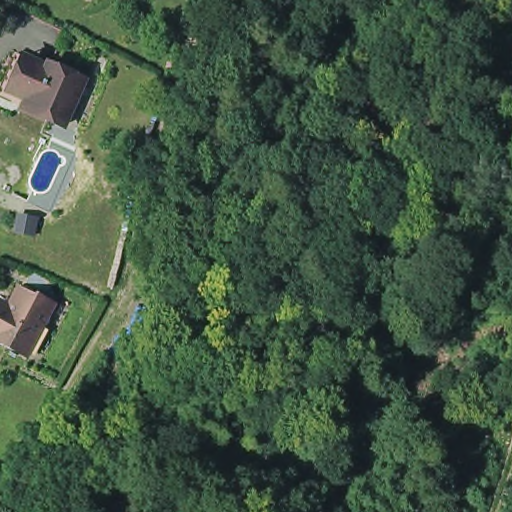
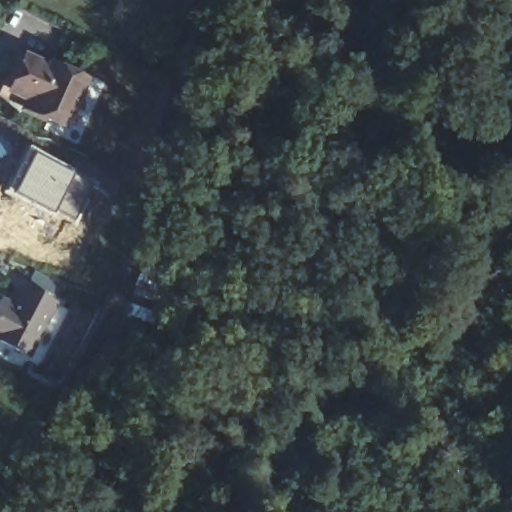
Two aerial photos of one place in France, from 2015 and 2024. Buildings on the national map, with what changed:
unchanged [(55,65),(90,81),(69,127),(28,108),(2,96),(20,54),(35,61),(52,69),(55,65)]
new [(72,171),(54,211),(10,192),(29,153),(72,171)]
unchanged [(2,347),(0,346),(0,325),(4,318),(7,311),(18,317),(20,313),(29,297),(45,306),(46,304),(64,313),(55,329),(35,367),(1,350),(2,347)]

